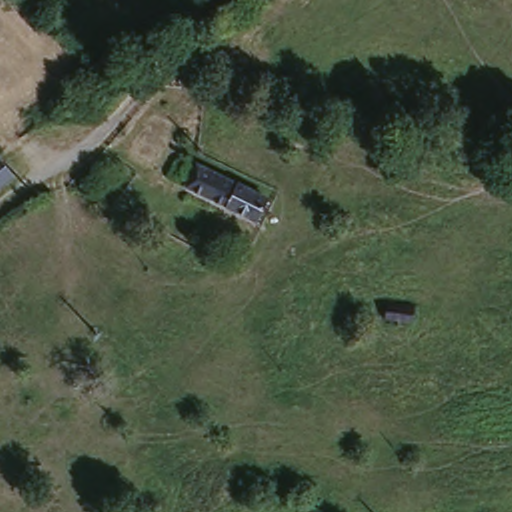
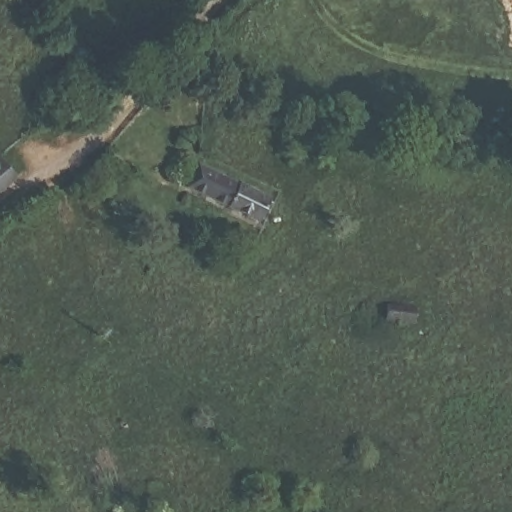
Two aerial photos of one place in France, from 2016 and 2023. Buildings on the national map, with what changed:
unchanged [(0,183),(0,156),(14,170),(0,183)]
unchanged [(271,194),(258,220),(186,184),(199,162),(271,194)]
unchanged [(410,308),(407,323),(381,319),(382,303),(410,308)]

